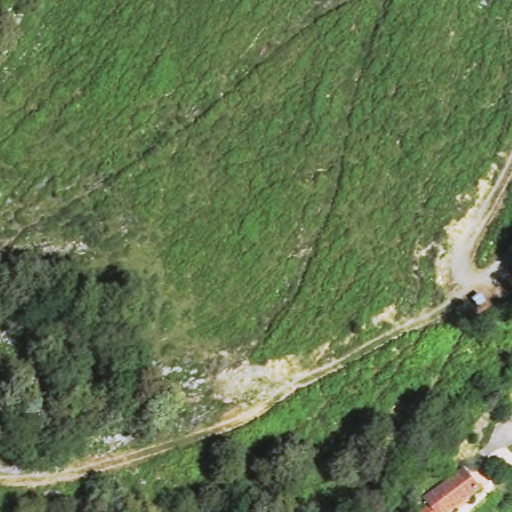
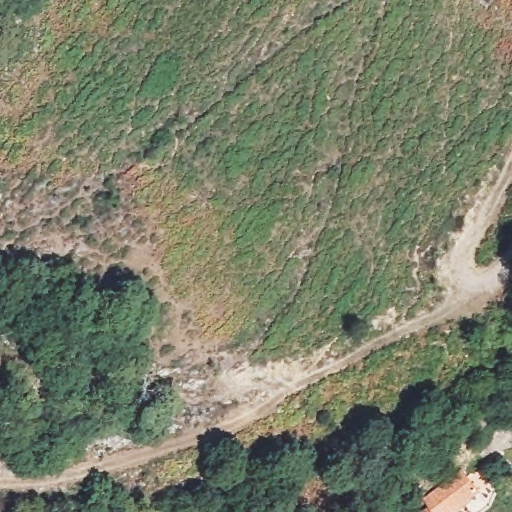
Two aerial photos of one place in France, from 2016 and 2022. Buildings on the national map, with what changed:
unchanged [(512,392),(512,403),(506,397),(512,392)]
unchanged [(423,512),(417,503),(461,473),(481,502),(467,512),(423,512)]

